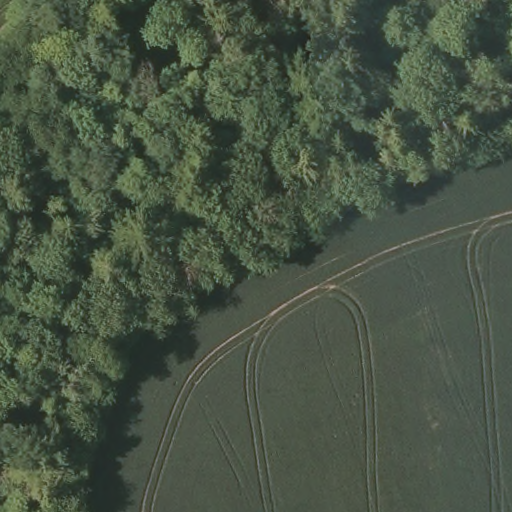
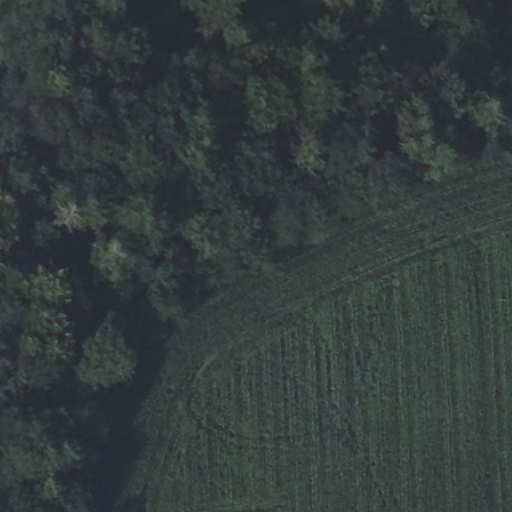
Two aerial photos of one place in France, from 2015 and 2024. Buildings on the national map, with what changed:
[]

